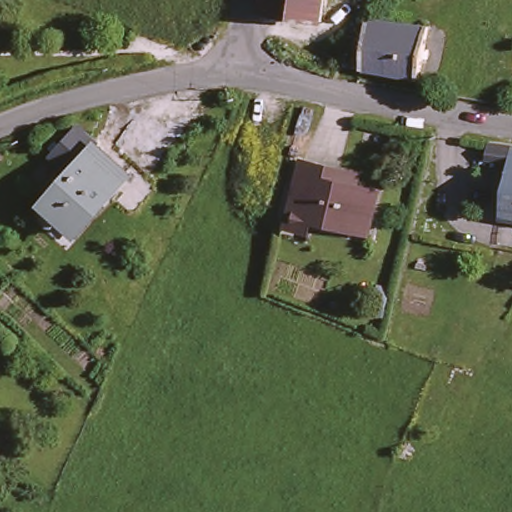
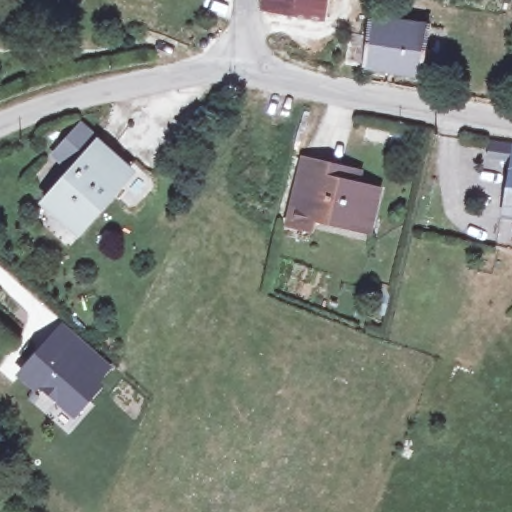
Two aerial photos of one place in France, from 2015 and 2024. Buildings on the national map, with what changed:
unchanged [(263,6),(264,0),(330,0),(327,17),(263,6)]
unchanged [(425,75),(365,61),(350,57),(355,27),(370,31),(373,15),(435,25),(425,75)]
unchanged [(99,143),(98,144),(128,170),(76,229),(45,200),(71,169),(52,152),(77,124),(99,143)]
unchanged [(301,152),(357,165),(355,177),(377,183),(368,222),(312,209),(310,221),(286,216),(301,152)]
unchanged [(512,153),(512,211),(505,210),(512,153)]
new [(61,320),(114,367),(102,382),(105,384),(73,420),(39,390),(35,393),(14,374),(61,320)]

